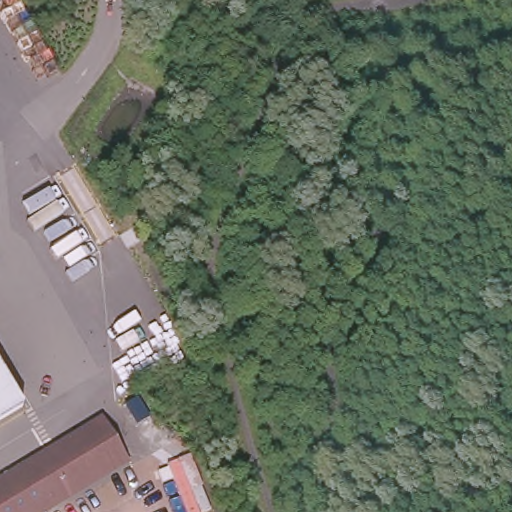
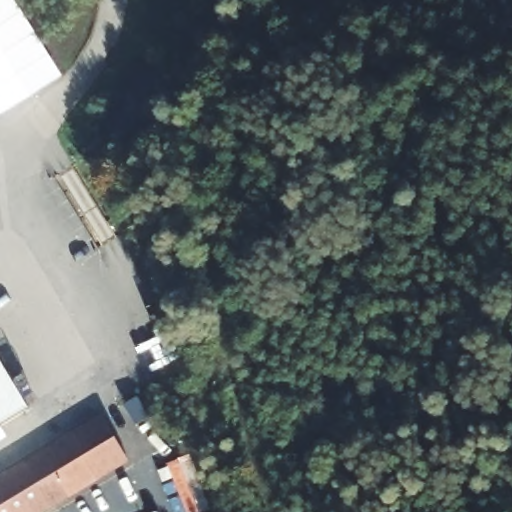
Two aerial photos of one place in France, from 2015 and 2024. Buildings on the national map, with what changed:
new [(0,112),(0,0),(12,0),(60,76),(0,112)]
unchanged [(0,419),(0,377),(18,408),(0,419)]
unchanged [(124,454),(28,512),(0,512),(0,469),(96,411),(124,454)]

